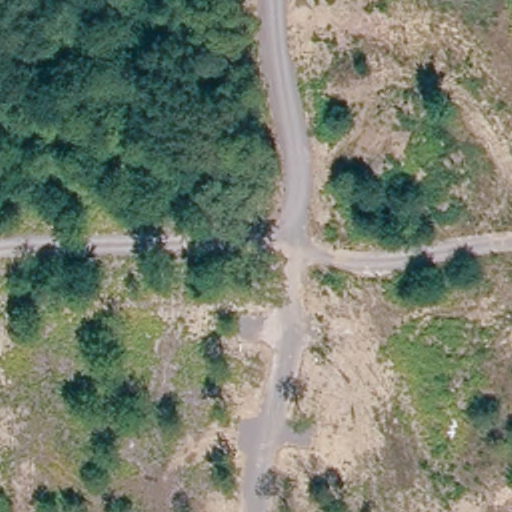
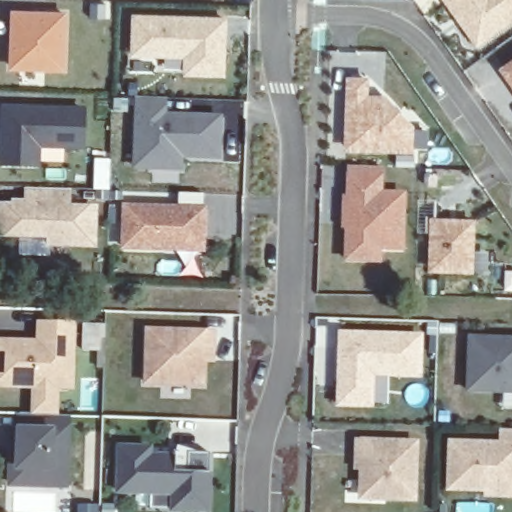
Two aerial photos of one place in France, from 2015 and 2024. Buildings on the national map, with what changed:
new [(512,0),(512,19),(482,40),(469,21),(465,15),(454,0),(512,0)]
new [(15,13),(35,14),(66,15),(65,69),(15,67),(15,28),(15,13)]
new [(220,72),(184,71),(184,54),(131,53),(133,15),(222,18),(221,42),(221,51),(220,72)]
new [(508,66),(512,64),(512,71),(508,66)]
new [(368,78),(367,95),(385,94),(414,127),(413,153),(342,151),(345,77),(368,78)]
new [(219,155),(182,155),(182,168),(133,166),(136,94),(165,95),(165,111),(219,114),(219,155)]
new [(0,123),(0,102),(11,98),(84,102),(83,146),(39,145),(39,165),(0,165),(0,123)]
new [(381,249),(380,261),(345,260),(347,165),(382,165),(383,190),(405,191),(402,249),(381,249)]
new [(71,190),(70,209),(98,209),(97,246),(54,245),(54,237),(2,235),(4,207),(31,207),(31,190),(71,190)]
new [(185,249),(126,247),(127,206),(182,208),(182,193),(207,194),(206,209),(206,236),(205,249),(185,249)]
new [(475,219),(472,274),(427,272),(429,217),(475,219)]
unchanged [(14,437),(20,437),(21,421),(35,421),(36,393),(0,392),(0,348),(29,349),(40,349),(41,330),(60,331),(75,331),(73,394),(58,393),(57,422),(69,422),(67,460),(66,492),(35,491),(12,491),(14,437)]
new [(374,375),(372,405),(336,403),(339,331),(422,332),(420,375),(374,375)]
unchanged [(215,338),(215,356),(214,367),(205,366),(205,391),(147,389),(149,336),(215,338)]
unchanged [(512,345),(512,397),(470,396),(471,344),(512,345)]
new [(450,495),(451,448),(502,450),(503,435),(512,435),(512,502),(489,501),(489,496),(450,495)]
new [(418,448),(416,505),(378,504),(363,496),(363,475),(358,475),(359,465),(360,447),(418,448)]
new [(151,455),(151,462),(177,463),(177,457),(189,457),(211,458),(209,512),(174,512),(175,499),(120,497),(121,453),(151,455)]

